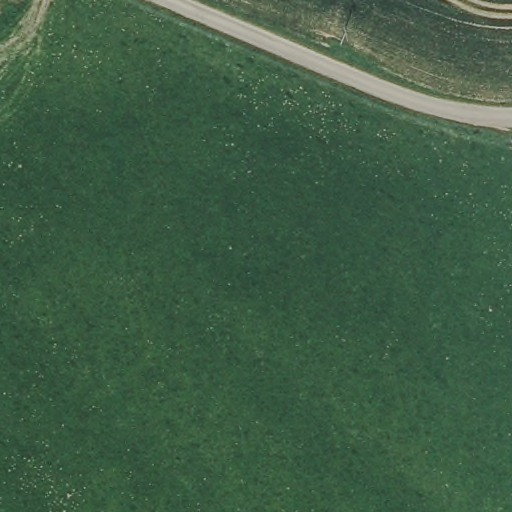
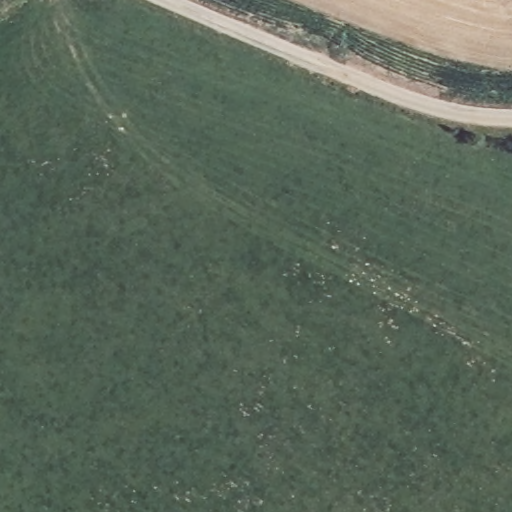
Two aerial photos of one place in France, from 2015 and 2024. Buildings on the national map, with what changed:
[]

